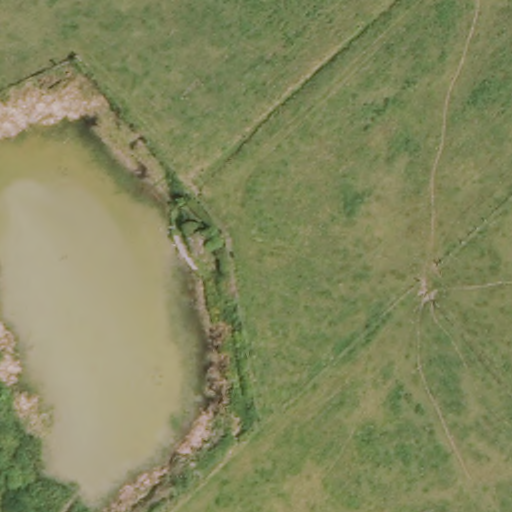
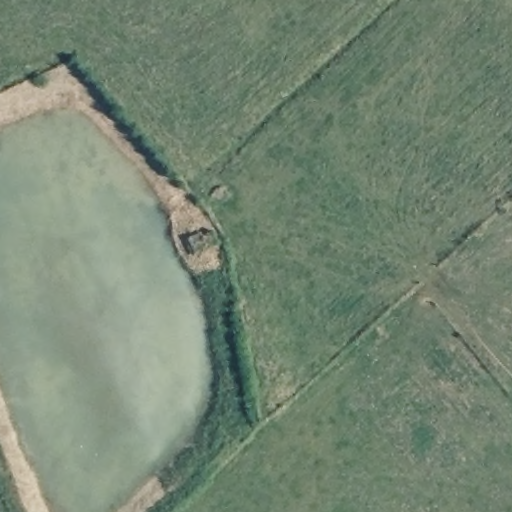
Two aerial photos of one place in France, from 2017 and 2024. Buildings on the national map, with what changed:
unchanged [(210,240),(213,255),(195,258),(192,244),(210,240)]

